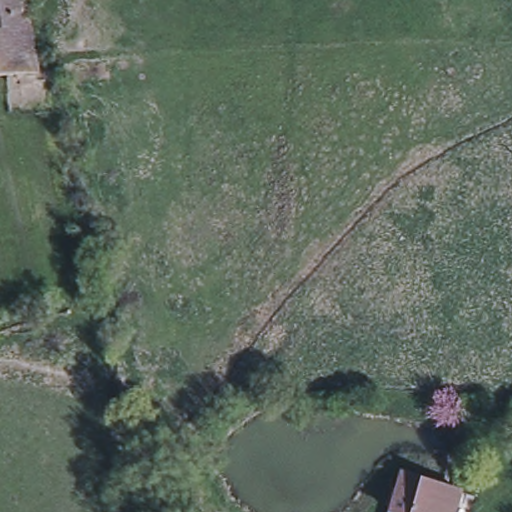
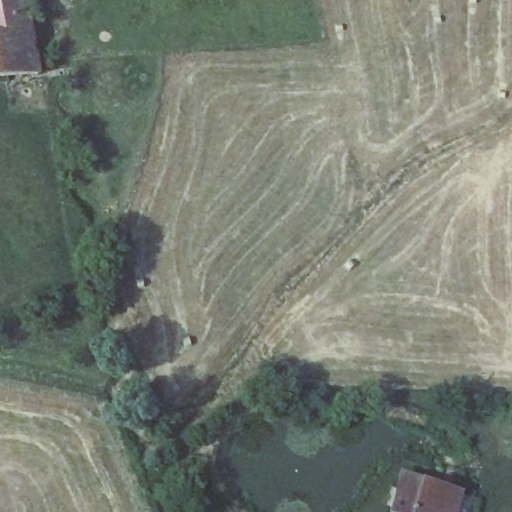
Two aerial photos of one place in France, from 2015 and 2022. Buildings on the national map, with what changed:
unchanged [(0,14),(0,0),(24,0),(40,73),(0,75),(0,31),(3,30),(0,14)]
unchanged [(0,31),(0,14),(3,30),(0,31)]
unchanged [(391,512),(399,484),(405,486),(408,474),(425,480),(460,491),(453,512),(392,512),(391,512)]

